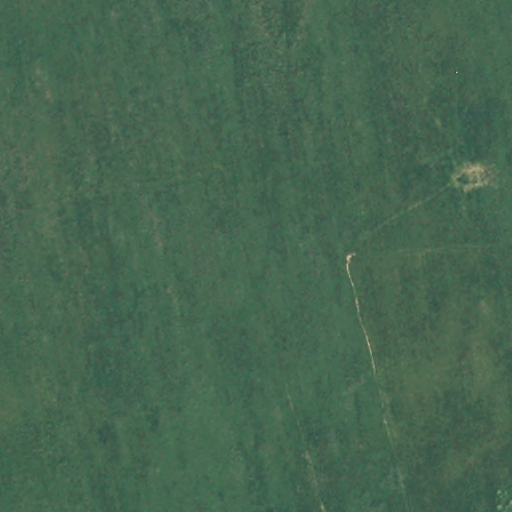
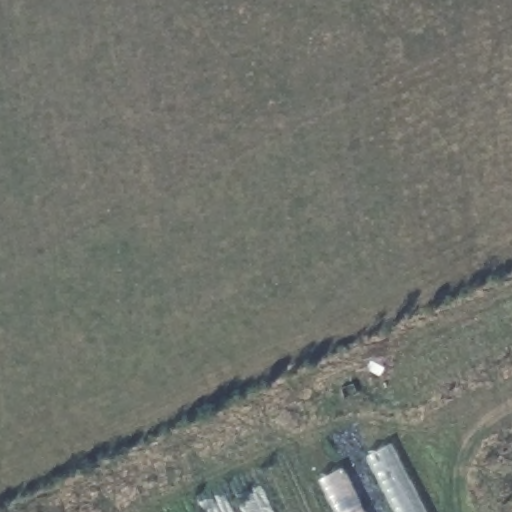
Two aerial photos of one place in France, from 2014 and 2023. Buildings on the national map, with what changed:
new [(423,512),(393,512),(364,455),(386,443),(423,512)]
new [(363,512),(335,512),(318,479),(340,468),(363,512)]

